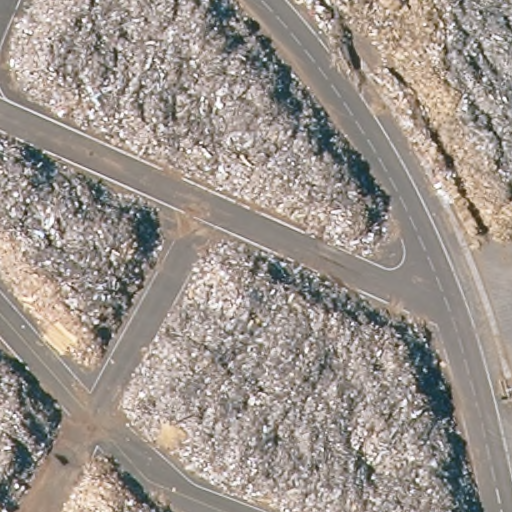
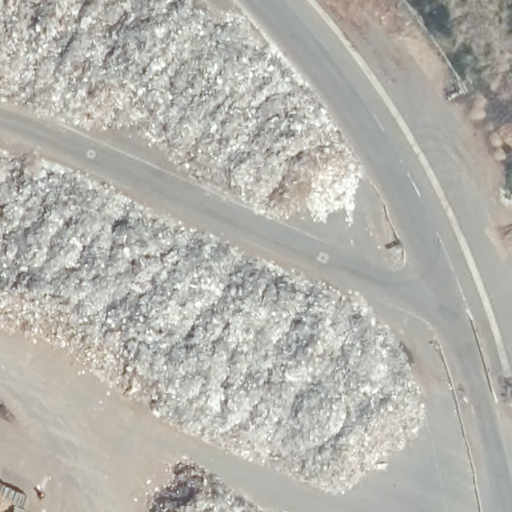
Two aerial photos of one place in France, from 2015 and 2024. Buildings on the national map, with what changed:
[]

